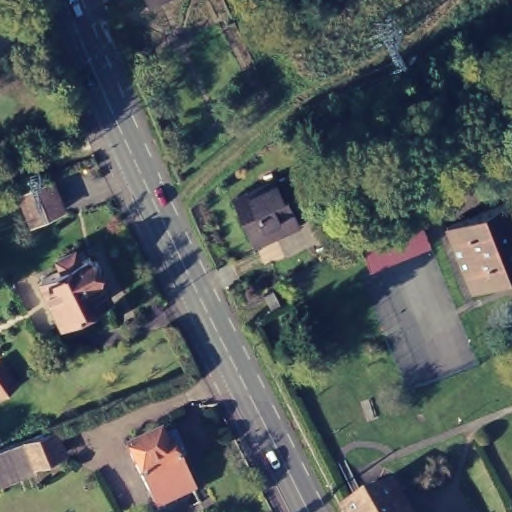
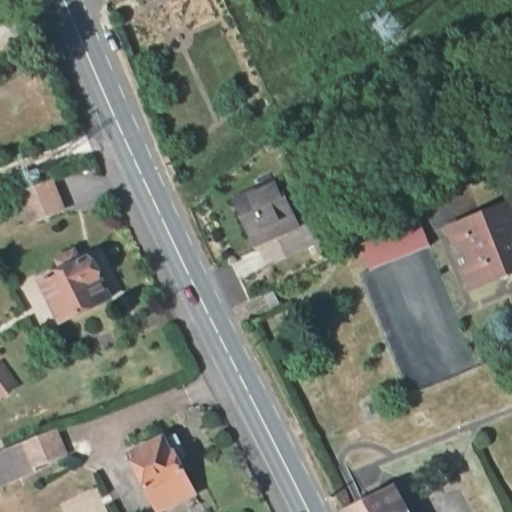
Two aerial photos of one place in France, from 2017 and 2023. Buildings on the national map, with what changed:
unchanged [(293,168),(307,199),(291,206),(297,221),(252,241),(232,195),(293,168)]
unchanged [(38,216),(26,186),(54,175),(67,206),(38,216)]
unchanged [(505,272),(475,284),(450,223),(512,197),(512,269),(505,272)]
unchanged [(425,218),(433,241),(374,265),(364,241),(425,218)]
unchanged [(88,251),(90,254),(97,255),(101,263),(97,269),(110,293),(60,317),(40,275),(62,265),(57,255),(74,246),(79,256),(88,251)]
unchanged [(272,292),(278,304),(269,309),(263,296),(272,292)]
unchanged [(0,399),(0,366),(15,387),(0,399)]
unchanged [(59,452),(27,465),(29,470),(7,479),(0,460),(0,448),(50,429),(59,452)]
unchanged [(176,429),(183,445),(175,450),(192,483),(181,489),(177,498),(165,503),(155,502),(128,449),(162,432),(164,435),(176,429)]
unchanged [(382,492),(393,512),(344,512),(382,492)]

